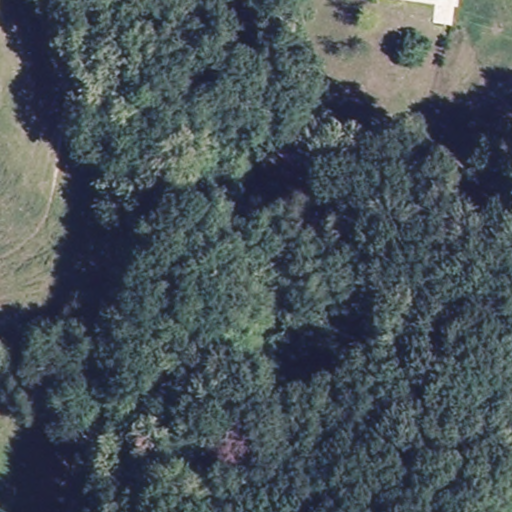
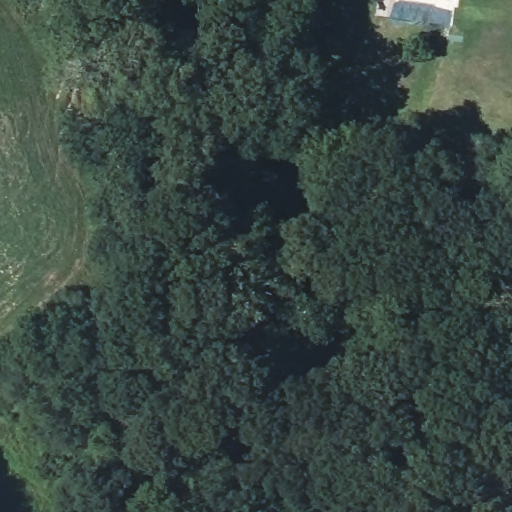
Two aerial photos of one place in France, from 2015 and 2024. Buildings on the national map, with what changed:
[]

